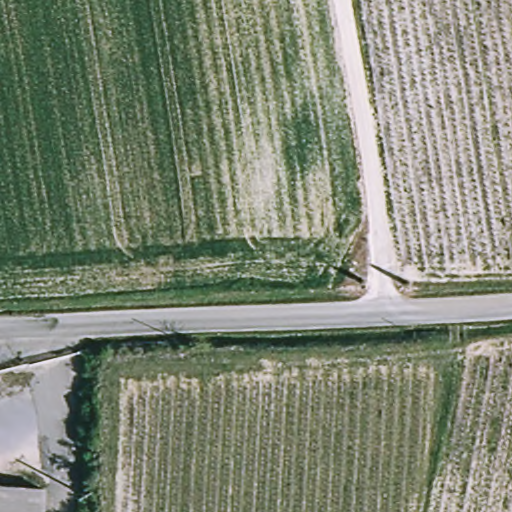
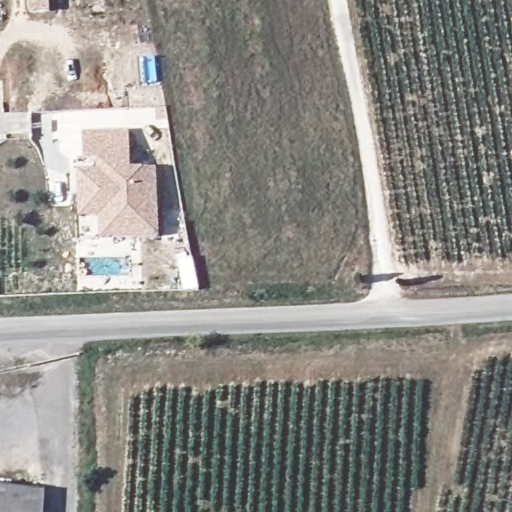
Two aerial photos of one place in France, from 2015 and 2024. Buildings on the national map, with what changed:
new [(53,15),(34,16),(33,0),(53,0),(53,15)]
new [(129,130),(131,163),(147,163),(147,169),(156,169),(159,238),(100,242),(100,219),(79,220),(77,172),(95,170),(95,159),(82,160),(80,132),(129,130)]
unchanged [(46,489),(44,512),(0,512),(0,486),(46,489)]

